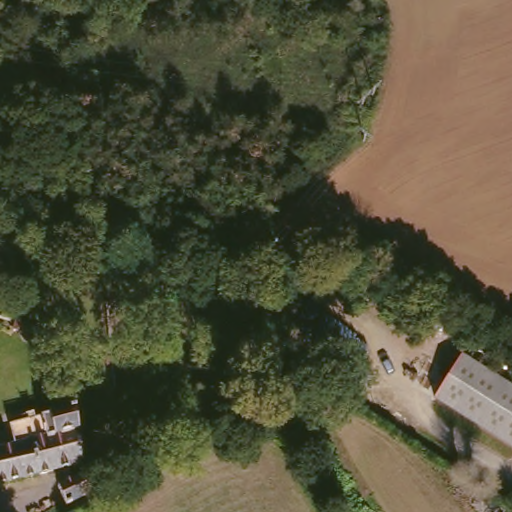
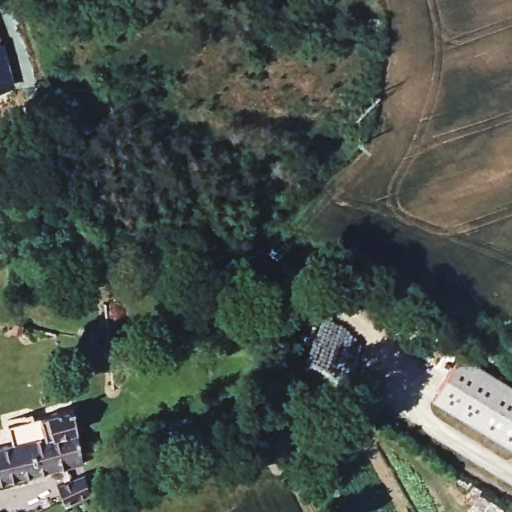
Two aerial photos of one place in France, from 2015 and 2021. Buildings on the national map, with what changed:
new [(2,44),(15,88),(0,91),(0,34),(2,44)]
unchanged [(460,359),(512,389),(512,447),(435,402),(460,359)]
unchanged [(13,442),(8,423),(70,407),(77,463),(0,480),(0,445),(13,442)]
unchanged [(84,474),(88,490),(88,492),(63,504),(55,485),(84,474)]

